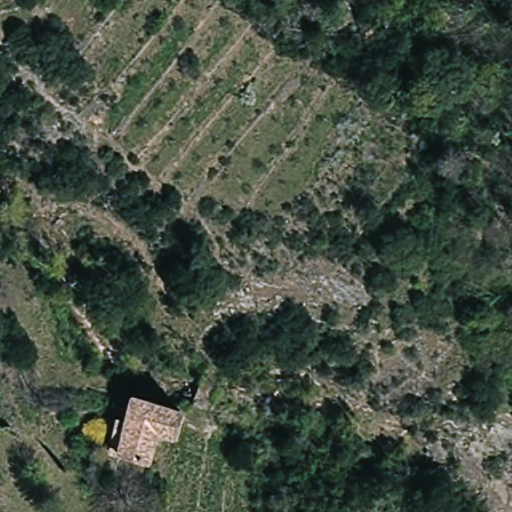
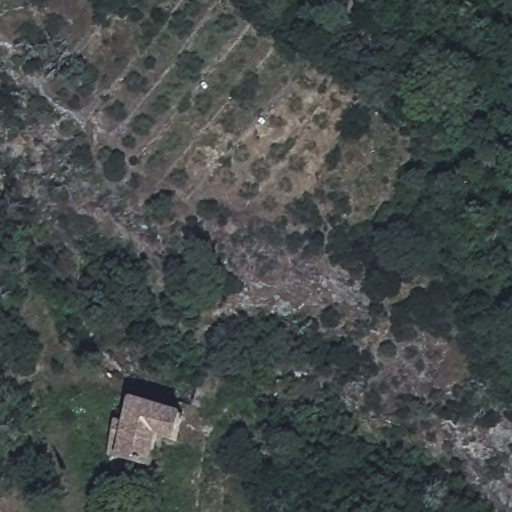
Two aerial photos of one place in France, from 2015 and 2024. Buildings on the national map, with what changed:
unchanged [(115,427),(128,430),(133,404),(187,414),(183,440),(160,436),(155,466),(123,460),(110,458),(115,427)]

